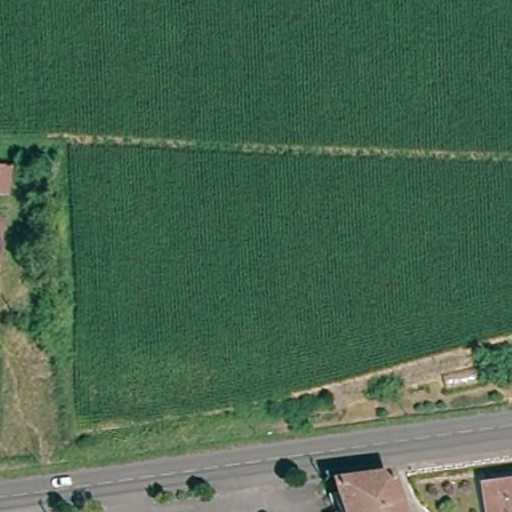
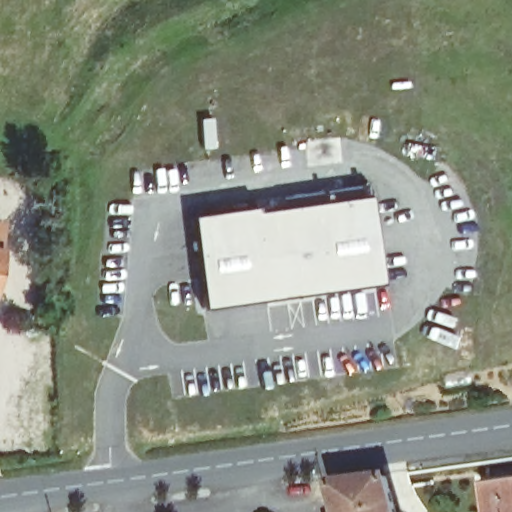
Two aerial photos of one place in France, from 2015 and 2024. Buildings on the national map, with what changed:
new [(256,211),(291,206),(290,195),(365,185),(366,196),(369,195),(380,284),(201,308),(189,215),(255,206),(256,211)]
unchanged [(0,269),(0,223),(11,226),(0,269)]
unchanged [(388,484),(391,483),(398,500),(402,512),(337,512),(349,508),(341,483),(383,477),(388,484)]
unchanged [(485,498),(485,492),(512,487),(512,512),(487,512),(485,498)]

